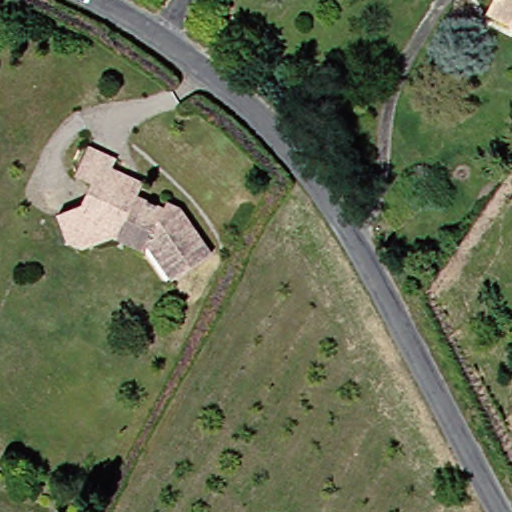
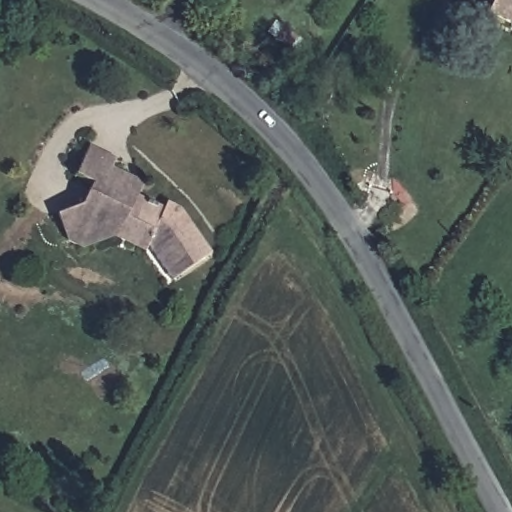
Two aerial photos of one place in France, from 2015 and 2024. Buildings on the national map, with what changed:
unchanged [(491,14),(498,0),(512,0),(512,25),(491,14)]
unchanged [(117,167),(148,182),(142,195),(169,207),(171,201),(186,207),(216,253),(175,281),(152,246),(155,239),(122,224),(72,243),(61,214),(86,205),(97,182),(80,175),(93,145),(121,158),(117,167)]

